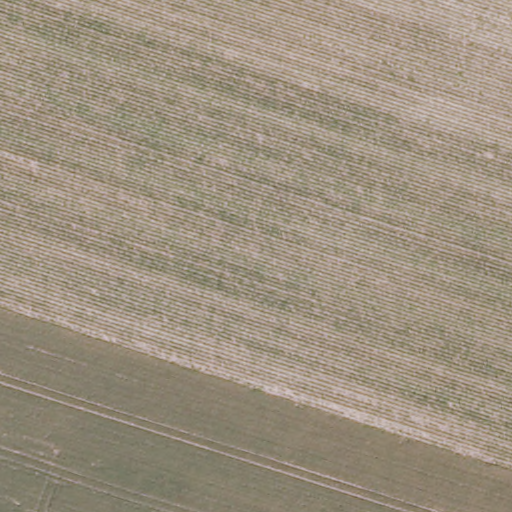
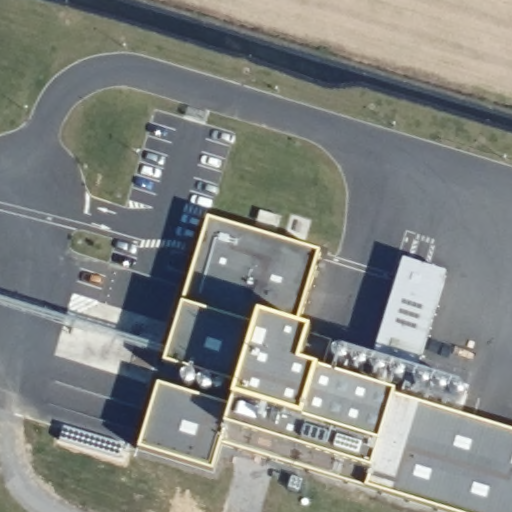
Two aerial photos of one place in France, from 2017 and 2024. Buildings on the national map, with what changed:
new [(199,255),(187,252),(190,243),(202,246),(210,219),(322,253),(299,331),(334,342),(328,361),(180,316),(199,255)]
new [(411,369),(375,358),(405,261),(448,274),(412,387),(407,384),(411,369)]
new [(324,375),(402,399),(407,384),(412,387),(408,401),(512,432),(512,459),(292,391),(170,355),(180,316),(328,361),(324,375)]
new [(335,361),(335,356),(339,353),(345,352),(347,354),(349,356),(350,361),(349,364),(347,366),(335,363),(335,361)]
new [(512,459),(512,512),(444,512),(223,446),(215,474),(140,451),(160,386),(233,408),(240,389),(166,366),(170,355),(292,391),(512,459)]
new [(354,363),(358,359),(363,358),(366,359),(368,362),(368,368),(366,372),(354,369),(354,363)]
new [(372,373),(373,369),(375,366),(377,364),(380,364),(383,364),(387,367),(388,369),(388,374),(386,377),(385,378),(373,374),(372,373)]
new [(392,376),(393,373),(395,371),(397,369),(402,369),(406,373),(407,378),(406,381),(405,383),(403,384),(392,380),(392,376)]
new [(188,376),(189,375),(193,376),(195,377),(198,380),(198,386),(195,389),(193,390),(187,389),(183,384),(184,379),(188,376)]
new [(202,383),(204,381),(210,381),(212,382),(214,384),(215,386),(215,389),(213,394),(212,394),(206,396),(202,394),(200,391),(200,389),(200,386),(202,383)]

